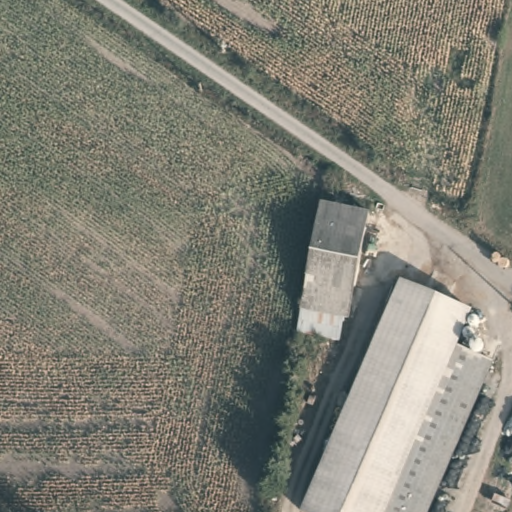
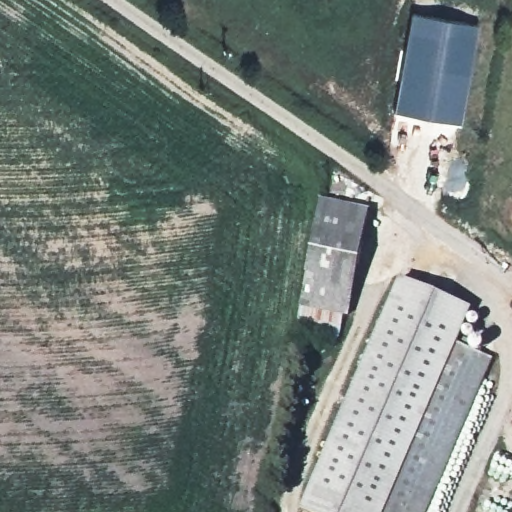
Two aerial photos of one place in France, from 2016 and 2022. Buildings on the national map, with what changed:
new [(477,25),(460,122),(392,111),(410,12),(477,25)]
unchanged [(368,210),(350,312),(344,311),(337,335),(299,326),(318,226),(323,200),(368,210)]
unchanged [(387,508),(385,512),(314,512),(296,504),(401,275),(478,311),(465,340),(387,508)]
unchanged [(497,355),(426,512),(394,512),(394,511),(387,508),(465,340),(497,355)]

